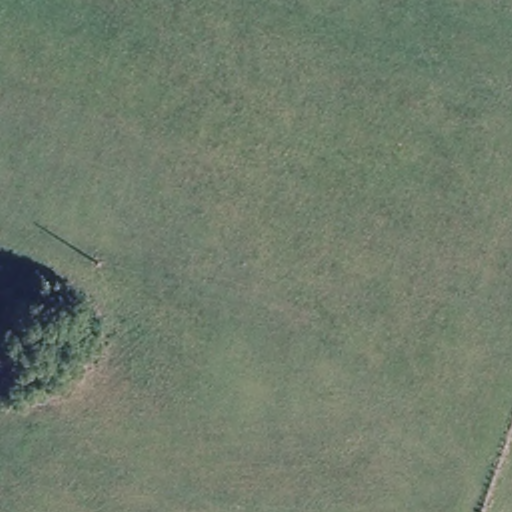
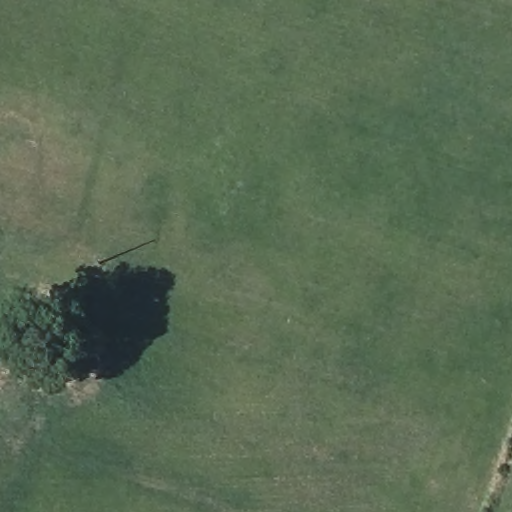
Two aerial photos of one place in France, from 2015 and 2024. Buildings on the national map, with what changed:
[]

